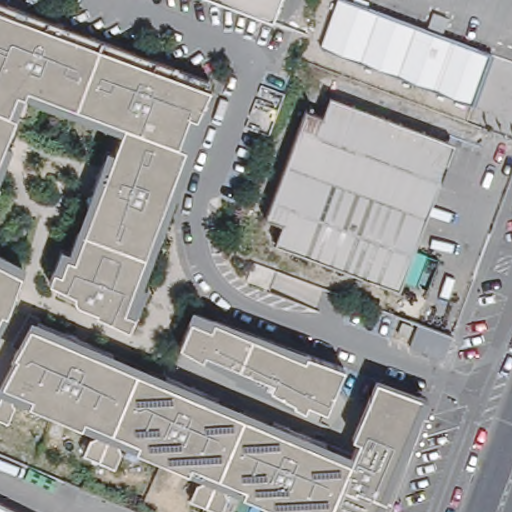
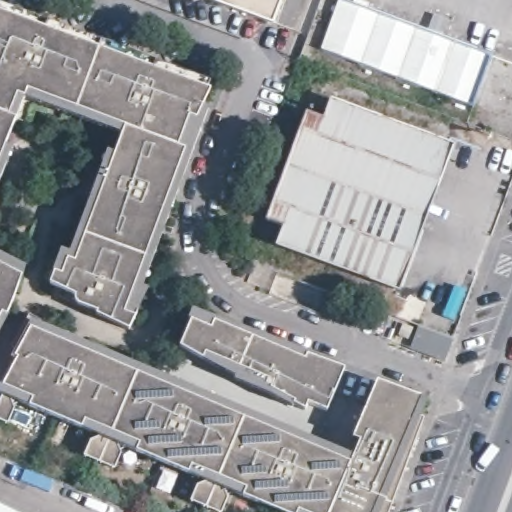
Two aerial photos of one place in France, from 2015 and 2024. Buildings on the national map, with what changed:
unchanged [(273,23),(212,0),(281,0),(273,23)]
unchanged [(431,13),(445,18),(439,35),(489,53),(470,104),(321,49),(338,0),(347,0),(425,29),(431,13)]
unchanged [(213,86),(143,284),(150,288),(131,327),(78,301),(80,296),(51,282),(61,253),(70,256),(123,128),(25,88),(5,143),(11,146),(0,172),(0,3),(212,86),(213,86)]
unchanged [(322,117),(329,98),(453,145),(399,290),(276,244),(282,224),(265,218),(306,111),(322,117)]
unchanged [(10,314),(0,333),(0,255),(26,268),(10,314)]
unchanged [(213,328),(216,320),(348,370),(330,414),(311,406),(308,413),(271,386),(271,382),(245,369),(213,356),(210,361),(183,346),(193,320),(213,328)]
unchanged [(387,512),(278,512),(229,491),(220,512),(219,512),(193,498),(201,477),(123,443),(115,465),(86,455),(95,434),(20,402),(12,423),(0,418),(0,399),(3,390),(35,323),(354,459),(361,441),(353,437),(380,379),(430,401),(387,512)]
unchanged [(0,512),(0,501),(22,512),(0,512)]

